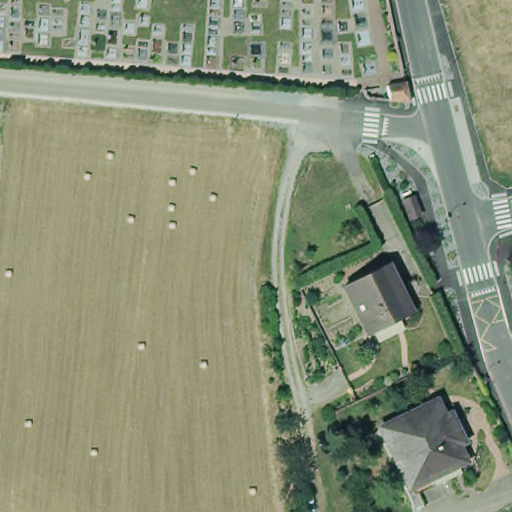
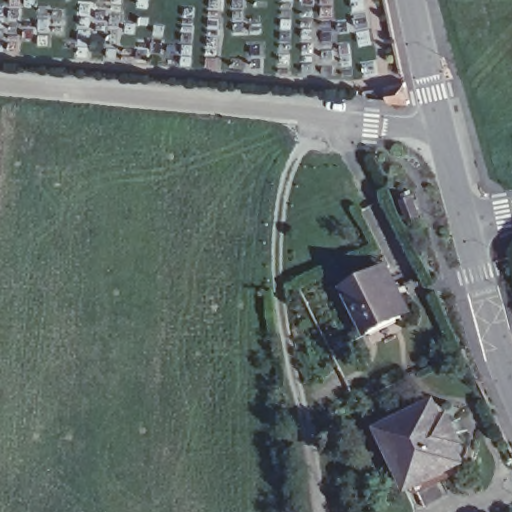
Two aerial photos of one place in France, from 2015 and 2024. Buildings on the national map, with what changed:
unchanged [(405,87),(408,101),(390,99),(387,85),(406,81),(407,86),(405,87)]
unchanged [(408,200),(415,218),(406,220),(400,203),(408,200)]
unchanged [(360,331),(337,284),(377,264),(386,282),(391,280),(405,308),(395,313),(360,331)]
unchanged [(402,488),(371,425),(423,397),(432,412),(439,409),(455,441),(449,445),(456,459),(452,461),(455,469),(412,492),(408,485),(402,488)]

